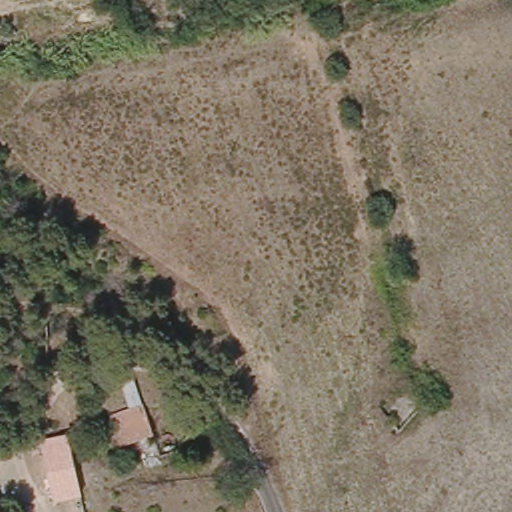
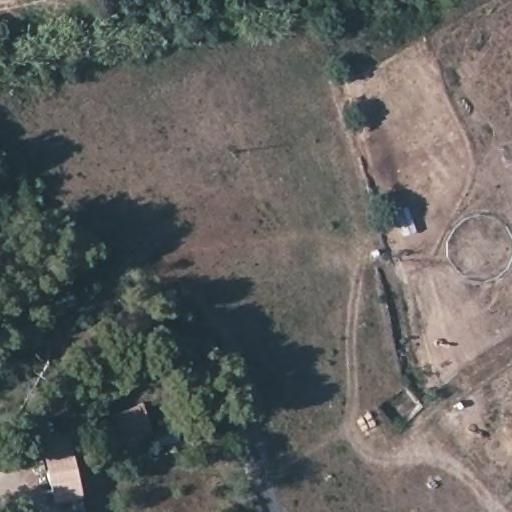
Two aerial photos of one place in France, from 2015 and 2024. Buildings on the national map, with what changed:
unchanged [(140,404),(148,438),(116,447),(106,412),(140,404)]
unchanged [(40,440),(66,433),(81,495),(55,500),(40,440)]

